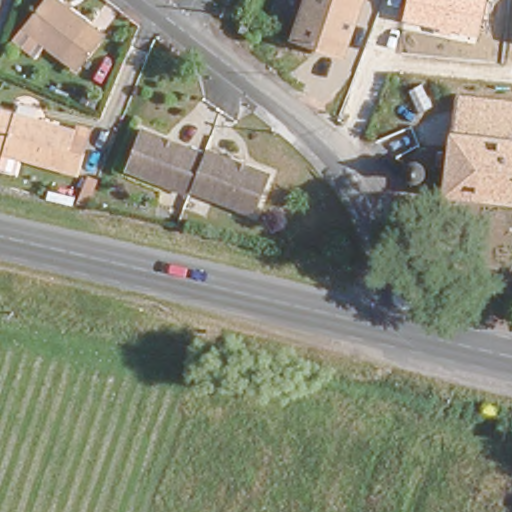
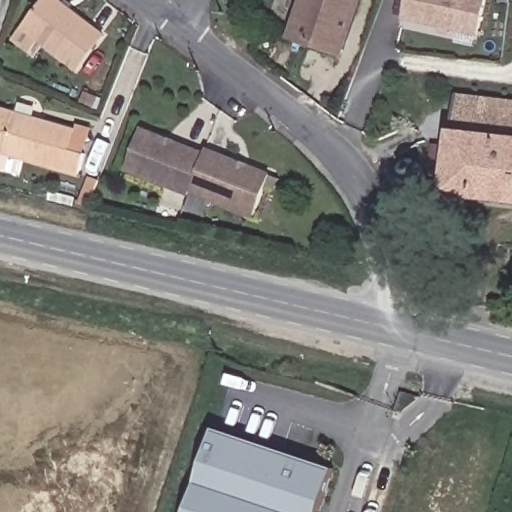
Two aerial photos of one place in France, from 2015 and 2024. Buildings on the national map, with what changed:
unchanged [(71,62),(18,25),(36,0),(65,0),(97,24),(71,62)]
unchanged [(250,12),(254,0),(259,0),(266,4),(264,17),(250,12)]
unchanged [(291,32),(301,0),(365,0),(348,51),(291,32)]
unchanged [(451,34),(438,31),(439,27),(402,19),(407,0),(486,0),(478,36),(451,30),(451,34)]
unchanged [(458,88),(512,98),(512,197),(443,182),(458,88)]
unchanged [(0,169),(0,110),(71,129),(74,122),(93,127),(86,150),(79,174),(23,159),(18,174),(0,169)]
unchanged [(187,191),(127,168),(144,127),(203,150),(188,188),(187,191)]
unchanged [(205,146),(265,170),(249,212),(188,188),(203,150),(205,146)]
unchanged [(86,215),(95,187),(104,190),(93,216),(86,215)]
new [(320,512),(188,512),(215,429),(335,469),(320,512)]

